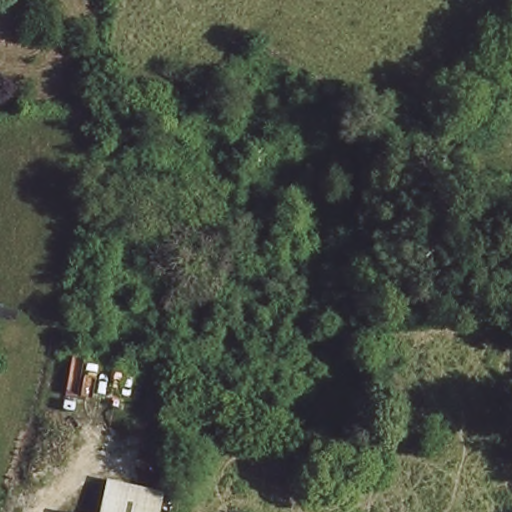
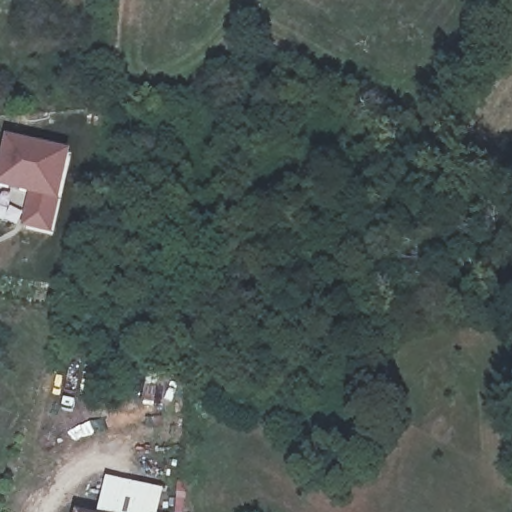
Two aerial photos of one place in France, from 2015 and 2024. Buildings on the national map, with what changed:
new [(22,228),(29,194),(0,190),(0,175),(8,139),(72,153),(59,203),(52,234),(22,228)]
unchanged [(151,512),(96,512),(107,489),(151,512)]
unchanged [(80,512),(74,512),(75,509),(80,512)]

